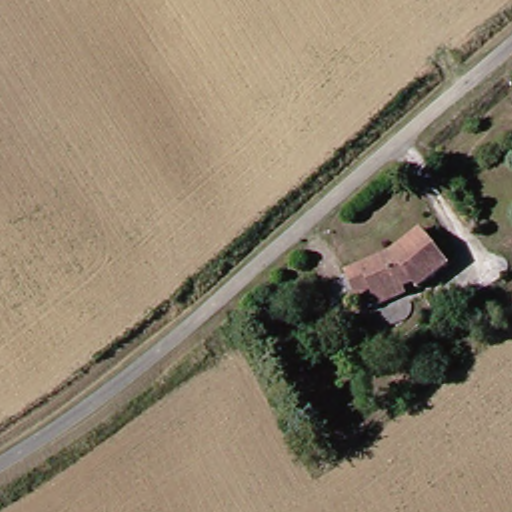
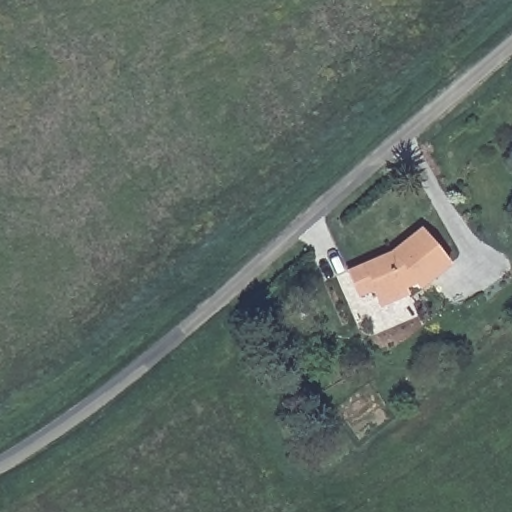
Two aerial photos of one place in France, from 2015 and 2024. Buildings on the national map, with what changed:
unchanged [(380,307),(376,299),(372,289),(357,296),(347,275),(362,267),(395,252),(423,229),(450,263),(418,288),(413,282),(402,287),(406,296),(380,307)]

